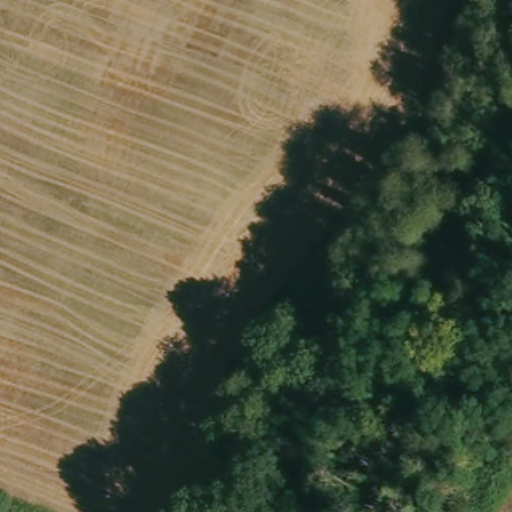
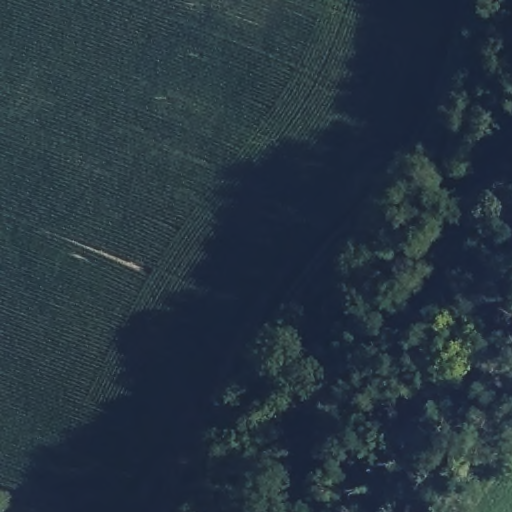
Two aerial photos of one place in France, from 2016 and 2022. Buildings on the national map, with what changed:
[]

